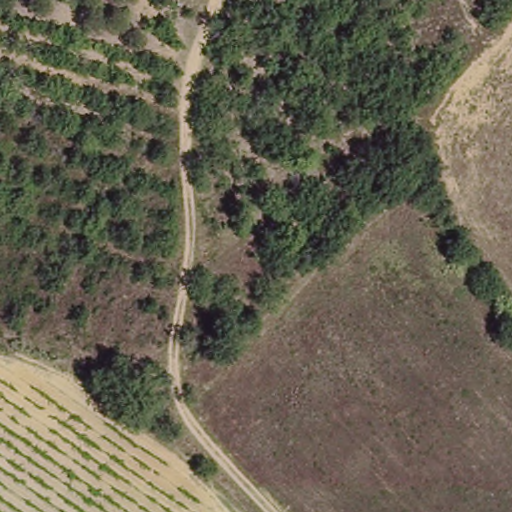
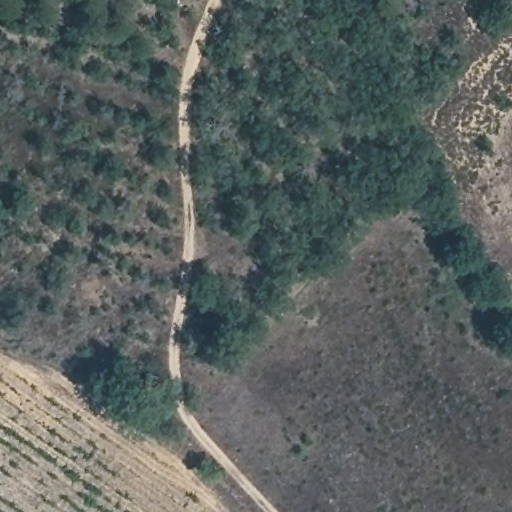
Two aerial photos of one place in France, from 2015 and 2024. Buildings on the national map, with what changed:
unchanged [(159,376),(155,395),(140,393),(145,373),(159,376)]

